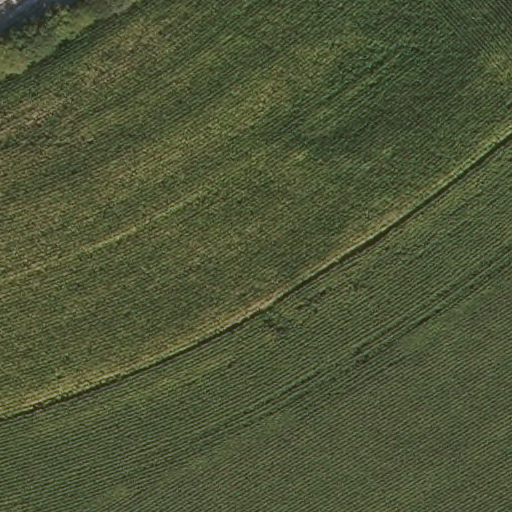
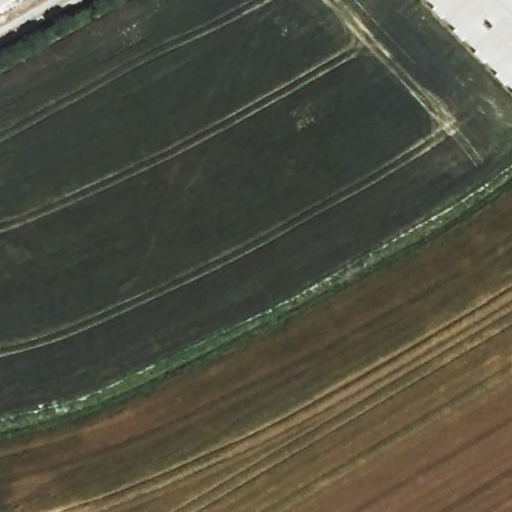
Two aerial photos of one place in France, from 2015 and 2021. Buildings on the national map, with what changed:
unchanged [(0,0),(15,0),(0,8),(0,0)]
new [(425,0),(512,0),(512,91),(425,0)]

